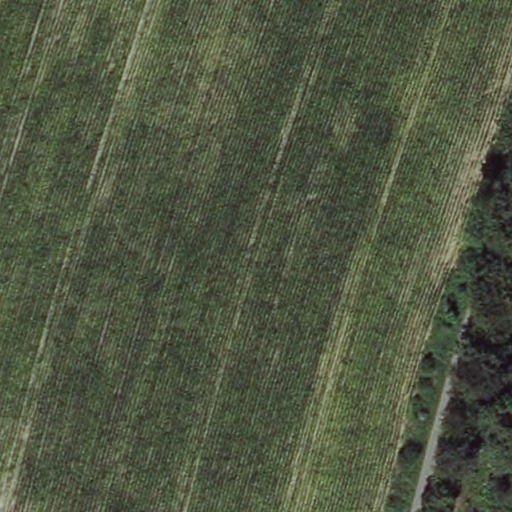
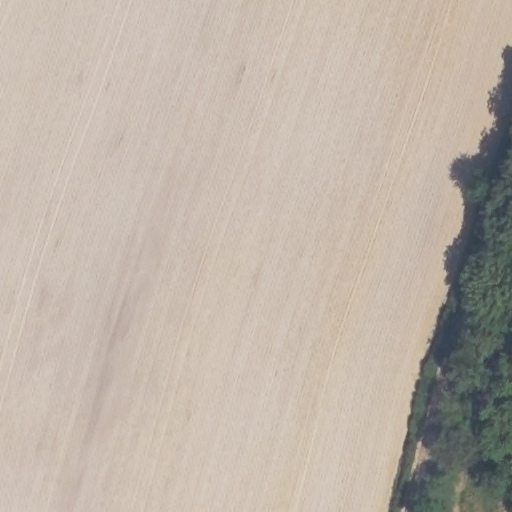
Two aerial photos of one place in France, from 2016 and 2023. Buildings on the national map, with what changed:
[]

